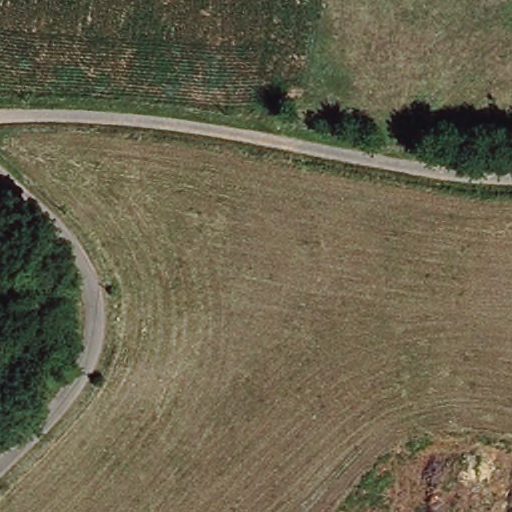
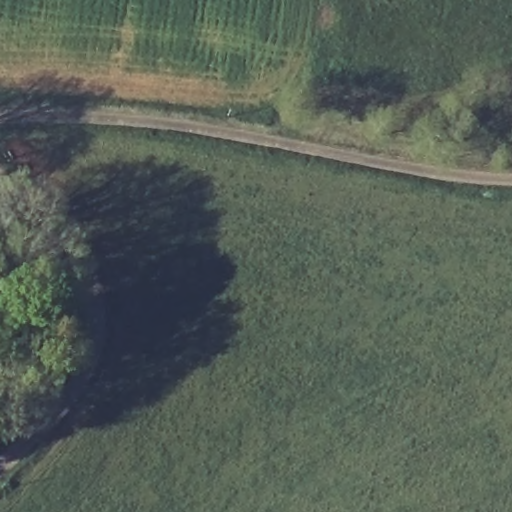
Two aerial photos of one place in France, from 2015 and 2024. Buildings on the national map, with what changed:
[]

